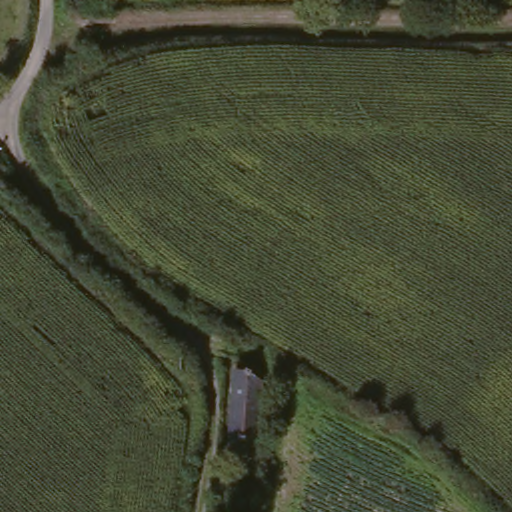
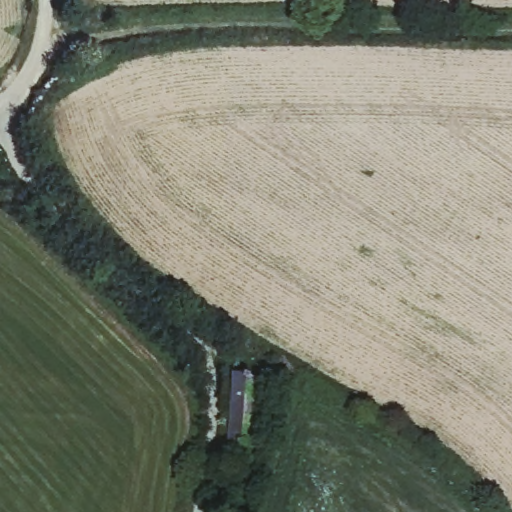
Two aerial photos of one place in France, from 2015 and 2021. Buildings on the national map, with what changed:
unchanged [(265,378),(260,451),(239,450),(239,438),(230,437),(235,376),(265,378)]

